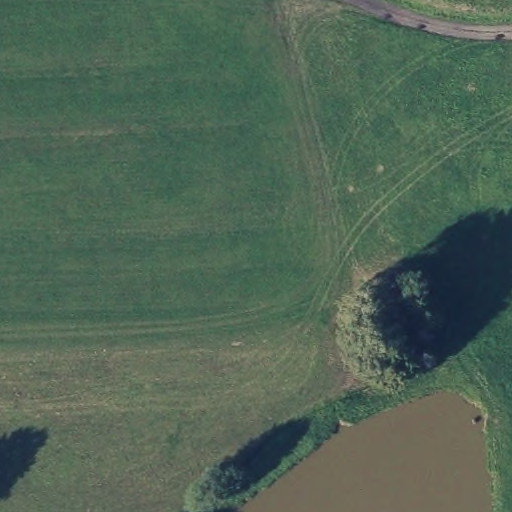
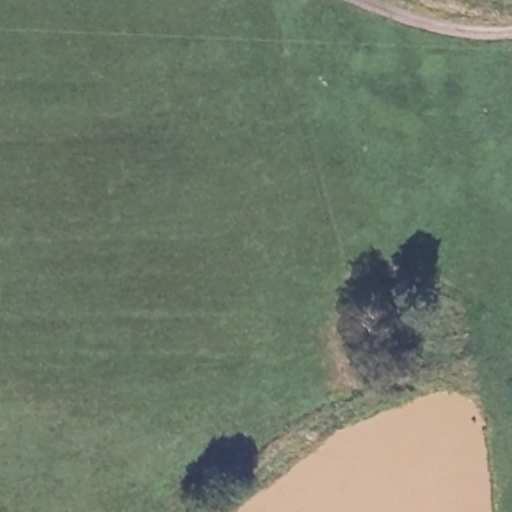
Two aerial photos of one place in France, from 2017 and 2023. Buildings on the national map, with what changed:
[]

